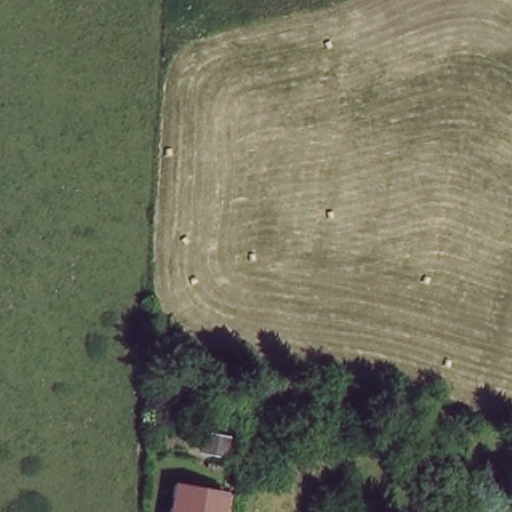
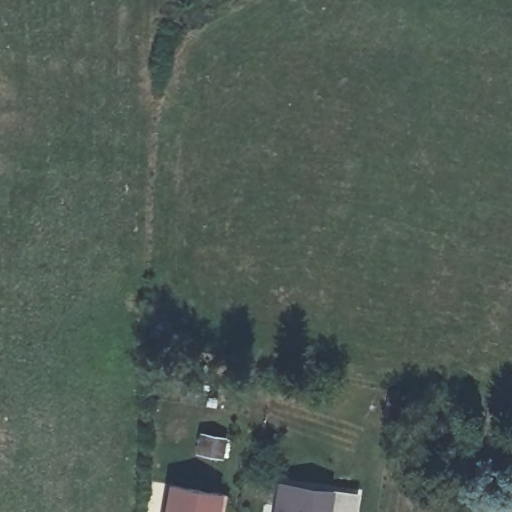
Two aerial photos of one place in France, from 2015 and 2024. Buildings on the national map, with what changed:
unchanged [(201,466),(183,464),(183,451),(200,451),(201,466)]
new [(276,481),(335,489),(359,492),(356,512),(272,512),(276,481)]
unchanged [(223,512),(161,512),(162,493),(221,494),(223,512)]

